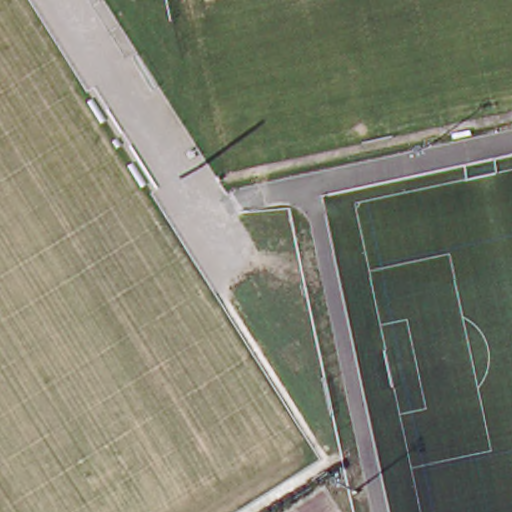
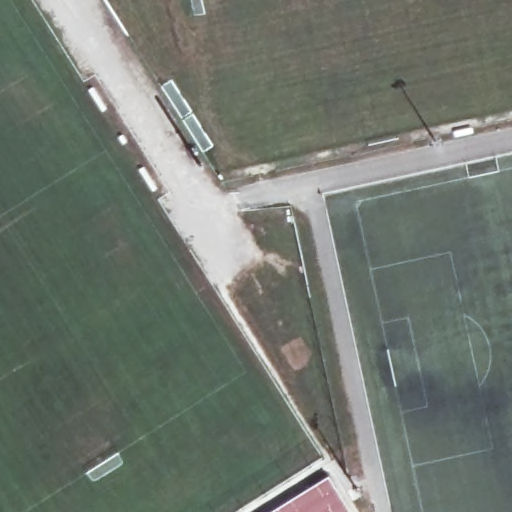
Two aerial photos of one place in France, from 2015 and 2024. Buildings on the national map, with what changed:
new [(326,476),(349,512),(269,512),(326,476)]

